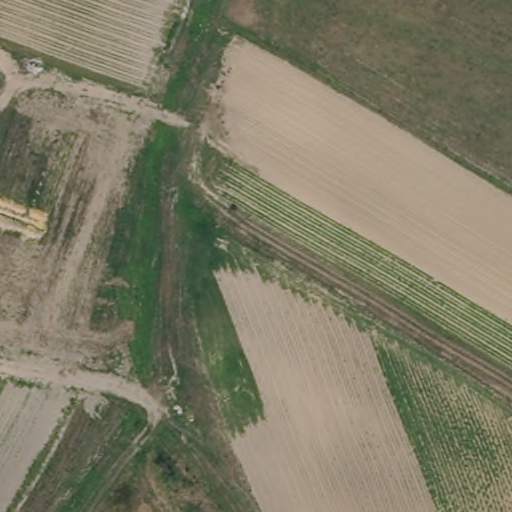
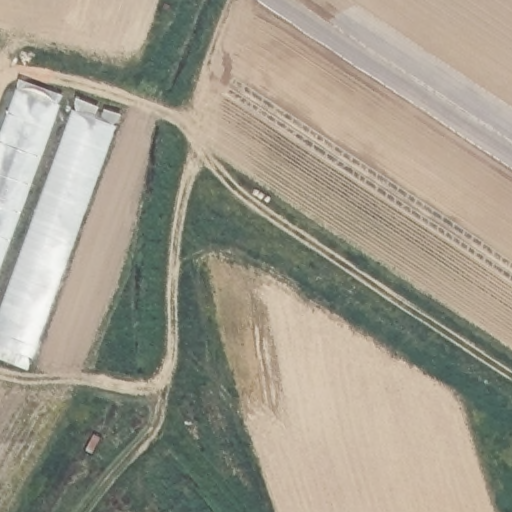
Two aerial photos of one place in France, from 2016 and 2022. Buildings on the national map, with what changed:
new [(0,131),(15,89),(115,125),(32,360),(0,348),(0,131)]

